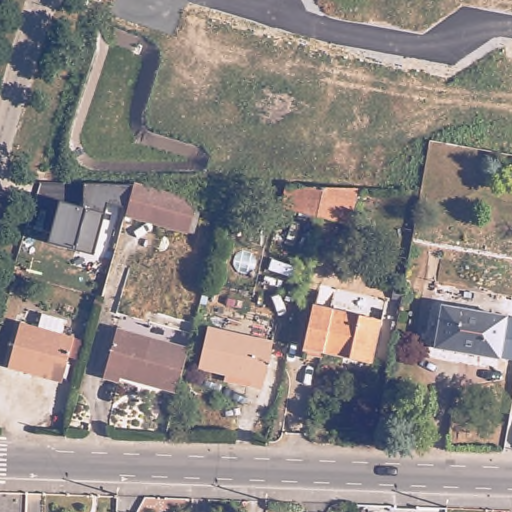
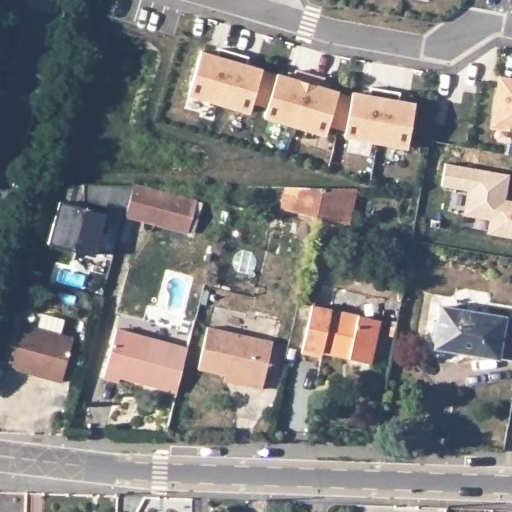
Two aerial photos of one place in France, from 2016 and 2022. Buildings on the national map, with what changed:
new [(204,54),(221,59),(223,51),(237,55),(222,105),(192,96),(204,54)]
new [(257,106),(254,115),(222,105),(237,55),(252,59),(250,67),(267,72),(273,74),(281,76),(297,81),(300,73),(313,77),(300,128),(268,119),(271,110),(263,108),(257,106)]
new [(332,128),(328,136),(300,128),(313,77),(327,81),(325,90),(341,94),(348,96),(356,98),(356,95),(372,98),(374,90),(389,92),(385,118),(386,118),(381,144),(348,138),(349,133),(341,131),(332,128)]
new [(512,79),(512,130),(491,126),(500,77),(512,79)]
new [(386,118),(385,118),(389,92),(404,95),(402,103),(419,106),(411,150),(381,144),(386,118)]
unchanged [(505,199),(512,200),(512,239),(486,235),(488,222),(463,218),(466,190),(442,186),(445,163),(512,175),(505,199)]
unchanged [(61,199),(84,205),(92,179),(132,189),(128,209),(109,203),(96,254),(77,252),(49,243),(61,199)]
unchanged [(127,215),(128,209),(132,189),(133,186),(197,203),(189,232),(127,215)]
unchanged [(285,212),(290,189),(325,189),(356,190),(347,225),(318,219),(285,212)]
unchanged [(324,353),(322,358),(303,353),(315,306),(382,321),(372,363),(350,358),(341,356),(324,353)]
unchanged [(443,340),(449,307),(512,318),(504,359),(468,352),(442,348),(443,340)]
unchanged [(11,366),(23,322),(40,326),(43,312),(66,318),(62,332),(75,337),(62,381),(11,366)]
unchanged [(100,372),(114,323),(185,344),(182,354),(175,388),(117,372),(116,377),(100,372)]
unchanged [(200,369),(210,328),(274,343),(263,389),(249,385),(250,380),(200,369)]

